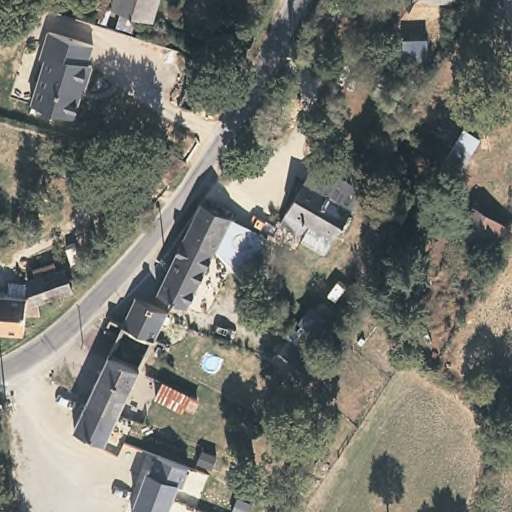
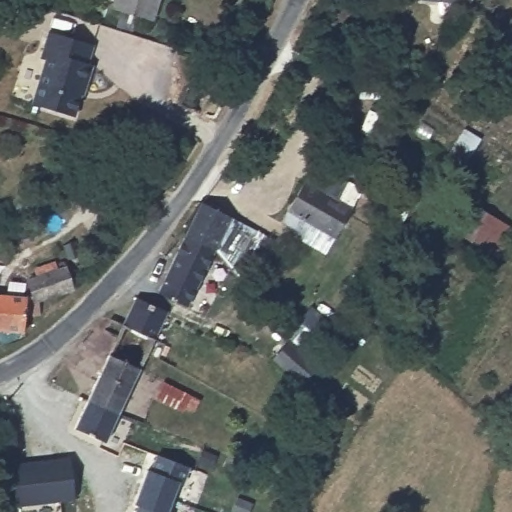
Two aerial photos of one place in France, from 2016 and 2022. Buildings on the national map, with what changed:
unchanged [(0,0),(1,0),(0,3),(0,0)]
unchanged [(110,8),(112,0),(154,0),(149,19),(110,8)]
unchanged [(419,1),(419,0),(458,0),(458,3),(419,1)]
unchanged [(33,106),(45,63),(40,61),(48,36),(91,48),(86,66),(91,67),(86,85),(81,84),(78,96),(81,96),(75,118),(33,106)]
unchanged [(465,126),(482,134),(459,175),(442,166),(465,126)]
unchanged [(311,242),(307,245),(302,246),(298,243),(294,238),(282,233),(303,190),(304,191),(313,174),(356,196),(348,213),(350,214),(332,246),(313,237),(311,242)]
unchanged [(254,230),(266,238),(256,261),(241,255),(238,261),(216,249),(188,307),(156,293),(198,204),(254,230)]
unchanged [(512,227),(512,229),(499,256),(460,237),(473,208),(512,227)]
unchanged [(26,276),(61,264),(70,286),(36,300),(36,313),(21,313),(21,330),(0,329),(0,290),(2,290),(3,279),(25,279),(26,276)]
unchanged [(166,309),(154,337),(122,323),(135,295),(166,309)]
unchanged [(342,329),(331,343),(301,324),(314,308),(342,329)]
unchanged [(316,372),(300,387),(272,359),(288,343),(316,372)]
unchanged [(141,365),(120,411),(86,398),(109,350),(141,365)]
unchanged [(120,411),(106,441),(75,428),(86,398),(120,411)]
unchanged [(228,458),(224,470),(208,464),(213,452),(228,458)]
unchanged [(134,507),(148,471),(151,473),(158,456),(189,467),(182,485),(179,484),(168,512),(137,512),(138,508),(134,507)]
new [(11,464),(71,457),(74,500),(16,506),(11,464)]

